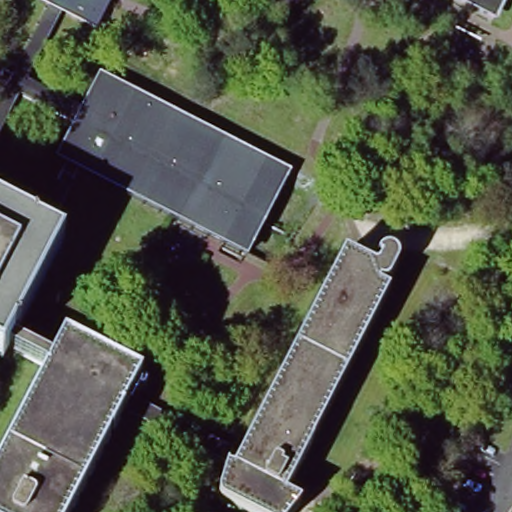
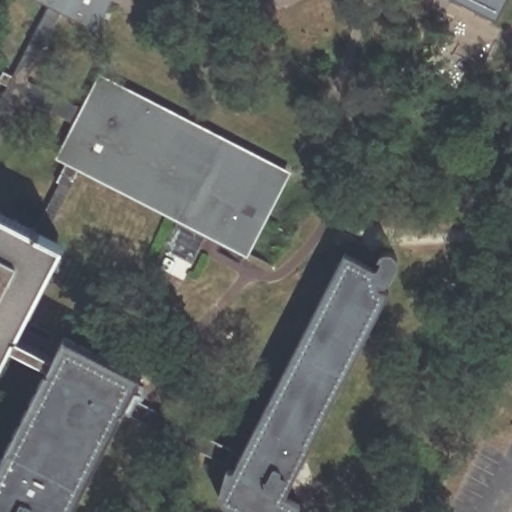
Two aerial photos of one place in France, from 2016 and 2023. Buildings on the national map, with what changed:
unchanged [(95,33),(65,17),(32,80),(85,107),(100,77),(286,171),(242,254),(77,170),(40,242),(33,238),(70,166),(57,160),(72,130),(18,103),(0,141),(0,95),(45,6),(32,0),(111,0),(95,33)]
unchanged [(498,21),(460,0),(509,0),(498,21)]
unchanged [(40,242),(51,249),(10,331),(5,329),(1,338),(0,341),(0,221),(33,238),(40,242)]
unchanged [(0,341),(1,338),(51,363),(61,343),(135,381),(127,400),(240,457),(340,258),(370,271),(373,271),(378,264),(373,262),(375,259),(381,256),(390,258),(391,260),(393,265),(386,283),(382,289),(372,292),(385,298),(282,501),(297,510),(296,512),(221,512),(219,511),(215,505),(216,496),(218,487),(222,472),(230,476),(233,469),(120,411),(69,512),(0,512),(0,458),(42,373),(0,351),(0,341)]

